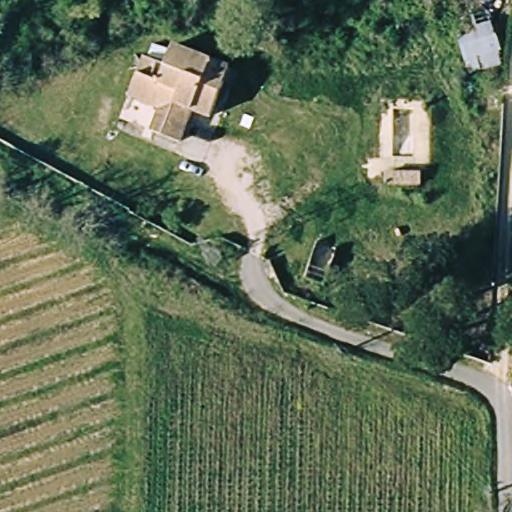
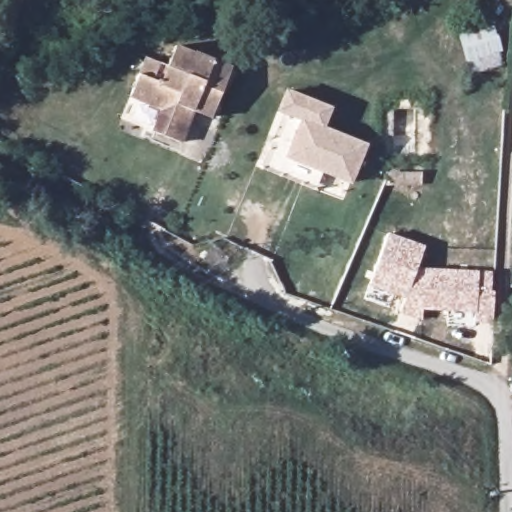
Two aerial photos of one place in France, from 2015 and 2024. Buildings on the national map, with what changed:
unchanged [(464,29),(484,19),(505,56),(476,69),(464,29)]
unchanged [(196,114),(183,146),(156,135),(165,113),(132,99),(148,60),(169,69),(178,49),(234,71),(214,120),(196,114)]
new [(350,183),(324,173),(316,190),(261,168),(283,114),(278,110),(287,91),(331,109),(322,129),(365,146),(350,183)]
unchanged [(385,174),(420,174),(420,185),(385,185),(385,174)]
new [(425,245),(417,268),(478,271),(491,272),(491,291),(494,292),(494,324),(475,324),(475,312),(423,310),(422,321),(400,314),(405,299),(368,286),(388,234),(425,245)]
demolished [(305,278),(318,242),(338,249),(325,285),(305,278)]

